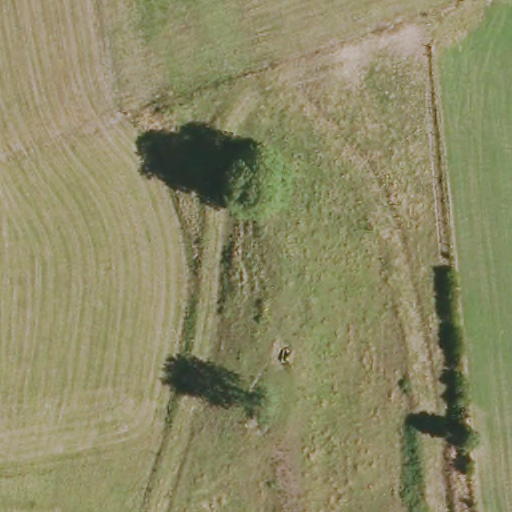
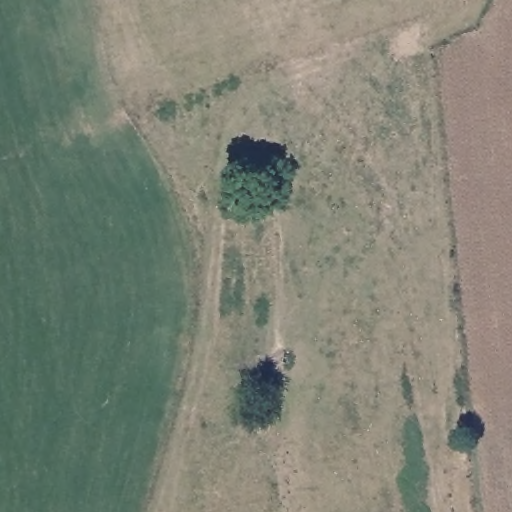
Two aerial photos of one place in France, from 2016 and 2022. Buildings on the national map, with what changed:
[]

